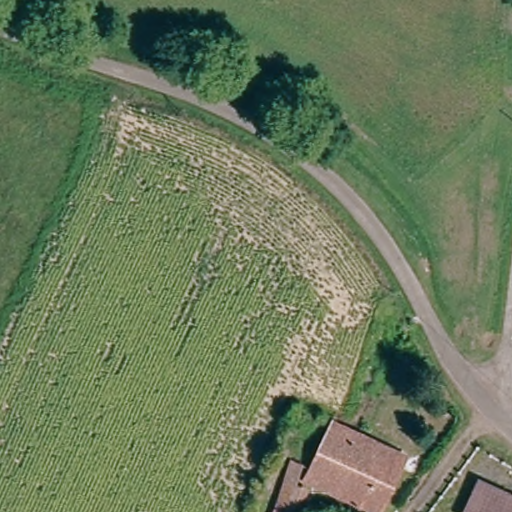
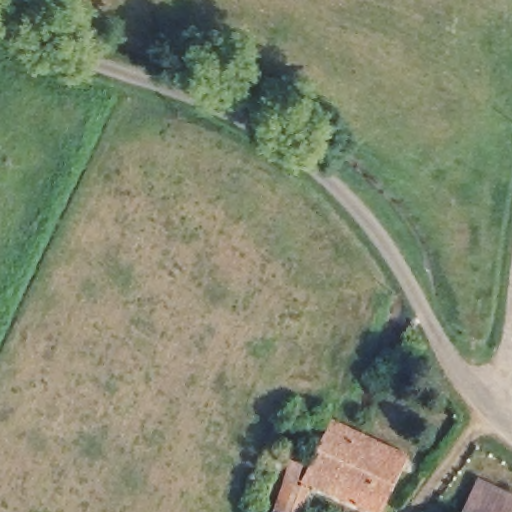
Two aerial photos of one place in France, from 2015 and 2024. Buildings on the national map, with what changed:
unchanged [(409,455),(383,512),(369,512),(314,489),(304,512),(303,512),(289,510),(288,512),(276,512),(273,511),(291,470),(312,474),(335,425),(336,426),(409,455)]
unchanged [(512,503),(512,512),(461,512),(460,512),(484,479),(512,503)]

